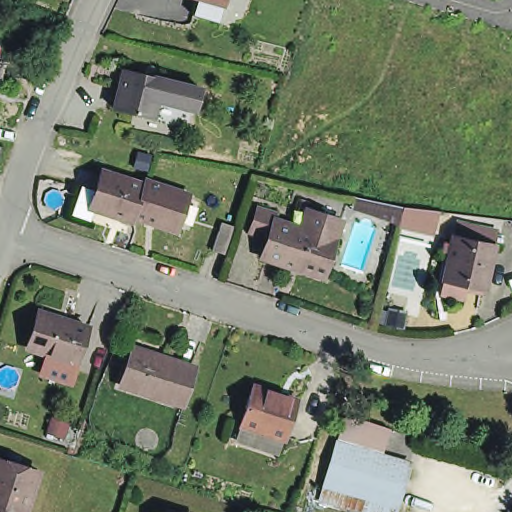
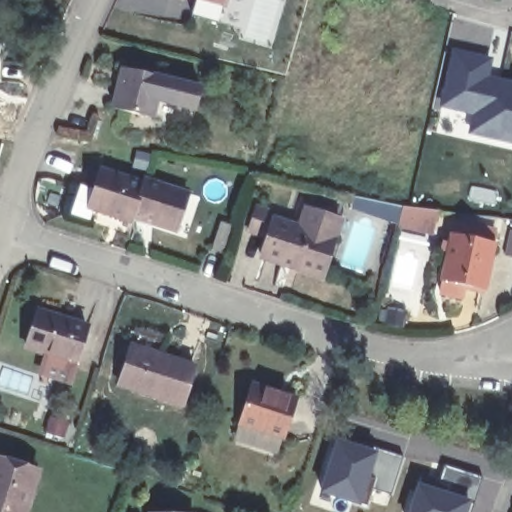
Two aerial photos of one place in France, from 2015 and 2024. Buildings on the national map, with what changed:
unchanged [(211,8),(214,0),(238,0),(233,15),(211,8)]
new [(449,46),(494,56),(490,74),(511,79),(512,73),(512,144),(467,134),(471,115),(436,105),(449,46)]
unchanged [(129,65),(168,75),(158,115),(119,105),(129,65)]
unchanged [(99,204),(111,167),(148,180),(149,180),(138,211),(137,216),(99,204)]
unchanged [(138,211),(149,180),(148,180),(149,175),(189,187),(178,224),(138,211)]
unchanged [(363,201),(366,189),(416,199),(413,207),(409,217),(363,201)]
unchanged [(303,205),(321,210),(344,216),(338,237),(326,272),(298,263),(297,267),(264,256),(271,236),(252,230),(260,204),(279,210),(276,217),(296,225),(303,205)]
unchanged [(216,248),(226,221),(239,225),(229,253),(216,248)]
unchanged [(438,286),(447,239),(450,227),(489,236),(488,247),(477,295),(438,286)]
new [(509,229),(512,229),(512,256),(504,254),(509,229)]
unchanged [(27,342),(39,306),(86,321),(75,358),(27,342)]
unchanged [(118,375),(132,335),(195,356),(182,396),(118,375)]
unchanged [(236,427),(239,413),(253,374),(297,388),(284,428),(281,427),(276,440),(236,427)]
unchanged [(322,490),(333,453),(334,451),(341,426),(386,438),(379,463),(407,471),(407,473),(397,510),(322,490)]
unchanged [(0,457),(40,470),(27,512),(0,512),(0,457)]
new [(443,463),(482,475),(474,500),(435,485),(443,463)]
new [(417,480),(435,485),(474,500),(469,512),(407,512),(417,480)]
unchanged [(178,510),(199,510),(199,512),(178,512),(178,510)]

